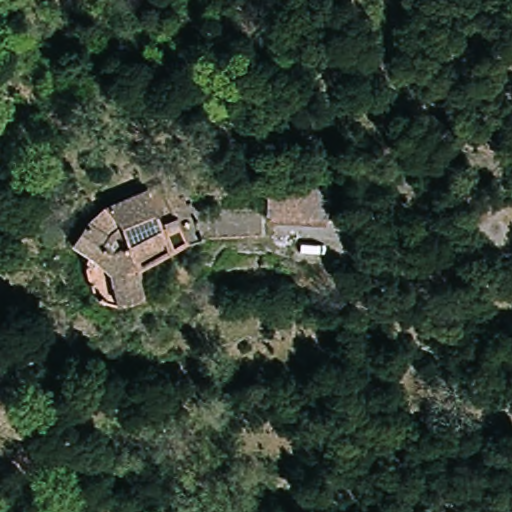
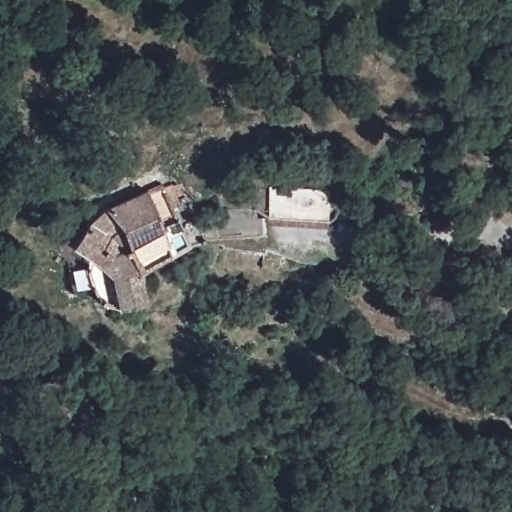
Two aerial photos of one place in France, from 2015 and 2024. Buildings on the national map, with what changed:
unchanged [(107,205),(170,185),(180,216),(127,251),(113,231),(108,237),(90,224),(107,205)]
unchanged [(331,186),(330,221),(270,222),(269,186),(331,186)]
unchanged [(180,216),(194,242),(139,273),(127,251),(180,216)]
unchanged [(142,303),(118,312),(107,277),(73,247),(90,224),(108,237),(113,231),(127,251),(139,273),(142,303)]

